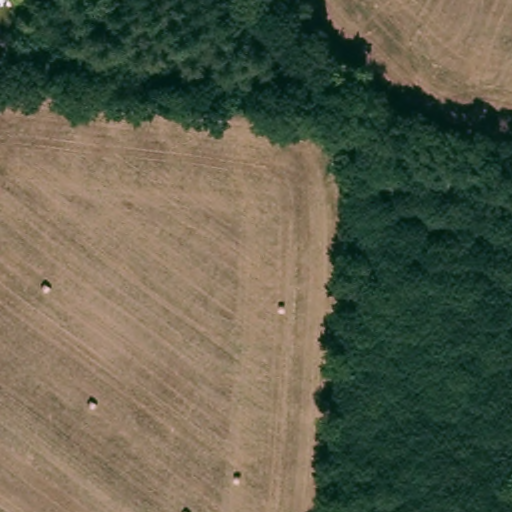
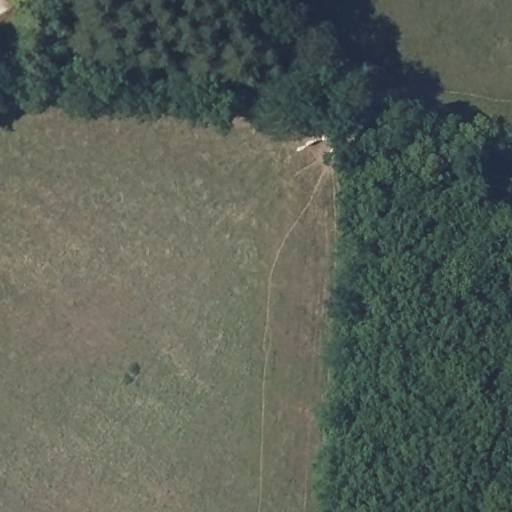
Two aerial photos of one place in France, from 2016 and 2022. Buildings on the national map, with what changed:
[]

